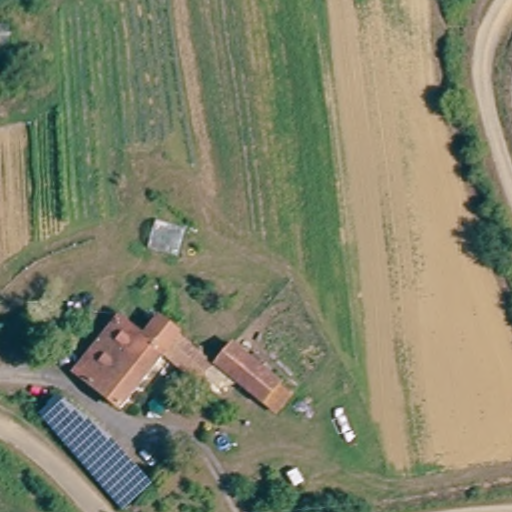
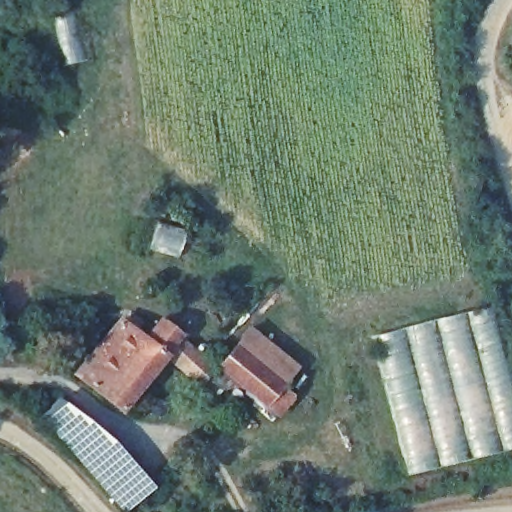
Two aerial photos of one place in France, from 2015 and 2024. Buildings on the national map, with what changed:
new [(406,474),(368,334),(489,307),(512,382),(512,448),(406,474)]
unchanged [(119,317),(145,338),(125,365),(119,372),(93,353),(114,324),(119,317)]
unchanged [(73,338),(39,356),(29,339),(62,319),(73,338)]
unchanged [(207,387),(175,361),(167,353),(144,380),(125,365),(145,338),(164,319),(183,334),(192,343),(223,369),(245,344),(294,381),(275,402),(244,374),(230,386),(218,397),(209,405),(199,395),(207,387)]
unchanged [(121,409),(77,374),(93,353),(119,372),(125,365),(144,380),(121,409)]
unchanged [(45,416),(62,404),(99,424),(151,481),(123,505),(59,438),(45,416)]

